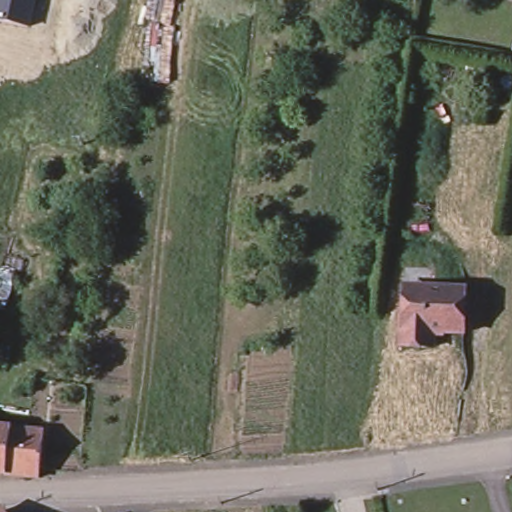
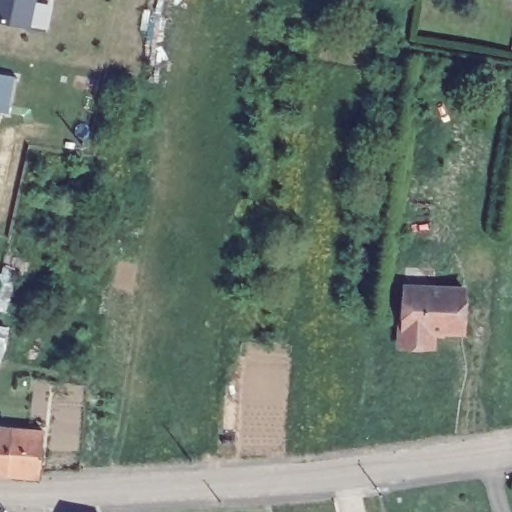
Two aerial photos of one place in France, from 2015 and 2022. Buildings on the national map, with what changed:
unchanged [(0,21),(0,0),(35,0),(30,27),(0,21)]
new [(0,112),(0,74),(15,77),(8,114),(0,112)]
unchanged [(428,345),(408,343),(395,343),(396,324),(400,324),(400,285),(410,285),(430,286),(451,286),(460,287),(458,329),(450,329),(428,328),(428,345)]
unchanged [(6,471),(0,470),(0,423),(10,424),(6,471)]
unchanged [(44,427),(40,470),(40,474),(6,471),(10,424),(44,427)]
unchanged [(3,506),(7,512),(0,512),(0,508),(3,506)]

